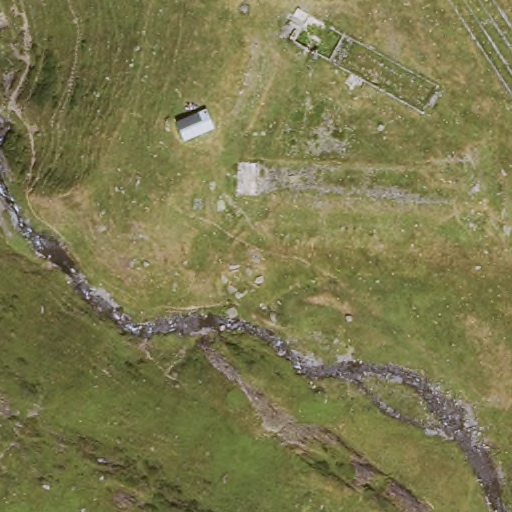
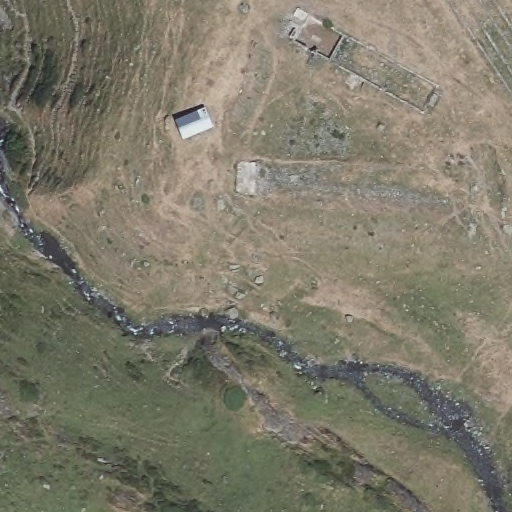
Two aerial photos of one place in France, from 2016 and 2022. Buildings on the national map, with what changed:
unchanged [(213,126),(182,137),(174,117),(207,106),(213,126)]

